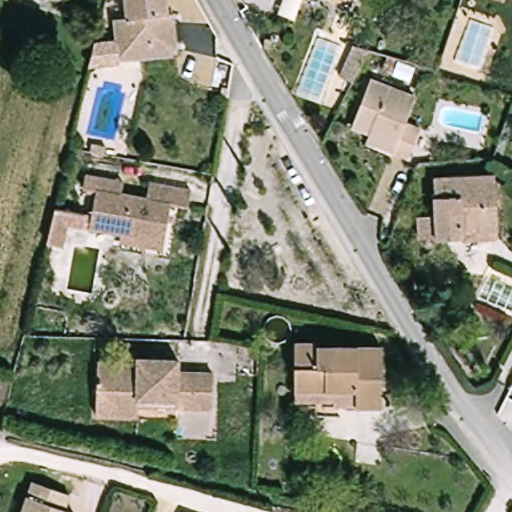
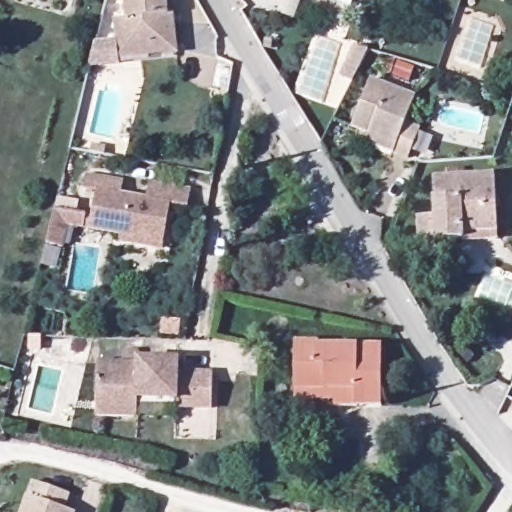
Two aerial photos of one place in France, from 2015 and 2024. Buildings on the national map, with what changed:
unchanged [(123,62),(122,49),(118,21),(132,20),(131,0),(173,0),(173,15),(181,14),(183,23),(184,46),(185,57),(123,62)]
unchanged [(263,35),(279,36),(278,46),(261,45),(263,35)]
unchanged [(355,46),(356,43),(371,51),(354,80),(340,72),(355,46)]
unchanged [(374,132),(356,125),(376,78),(420,97),(409,122),(424,129),(411,159),(396,152),(370,141),(374,132)]
unchanged [(462,242),(442,244),(441,238),(418,239),(416,214),(439,212),(437,177),(498,174),(499,228),(500,240),(462,242)]
unchanged [(129,242),(131,235),(96,228),(73,224),(68,247),(56,244),(65,209),(99,216),(105,191),(91,188),(95,175),(108,177),(132,182),(130,195),(155,200),(158,183),(199,192),(196,210),(178,206),(171,239),(169,250),(129,242)]
unchanged [(294,388),(299,343),(323,345),(322,350),(378,356),(376,413),(350,411),(350,403),(294,398),(294,388)]
unchanged [(106,412),(106,396),(107,360),(150,361),(150,357),(183,358),(183,369),(215,371),(214,407),(181,406),(181,397),(146,397),(145,413),(106,412)]
unchanged [(73,495),(68,512),(69,512),(28,512),(38,482),(73,495)]

